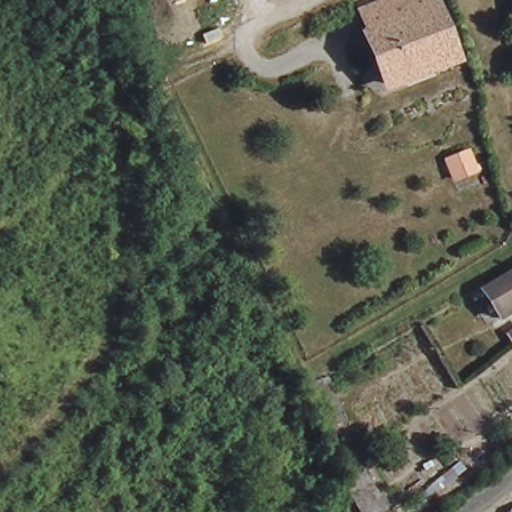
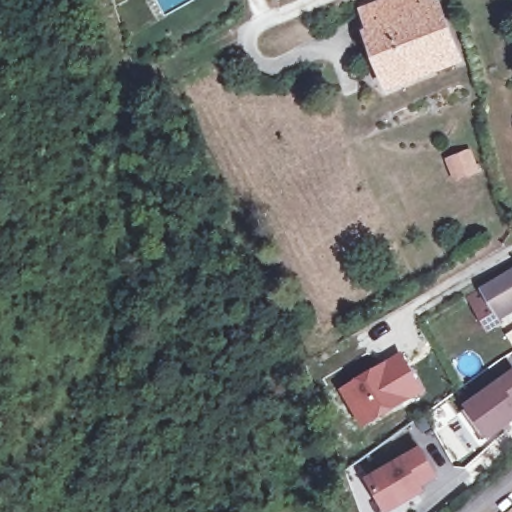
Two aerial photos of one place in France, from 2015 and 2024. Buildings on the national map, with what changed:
unchanged [(359,12),(389,0),(436,0),(438,5),(367,32),(359,12)]
unchanged [(457,55),(387,83),(367,32),(438,5),(457,55)]
unchanged [(457,179),(450,160),(467,152),(475,171),(457,179)]
unchanged [(512,263),(512,305),(496,314),(478,283),(512,263)]
unchanged [(512,342),(508,336),(512,333),(512,342)]
new [(403,353),(427,392),(364,429),(342,390),(403,353)]
new [(512,422),(484,442),(462,412),(512,376),(512,422)]
unchanged [(315,389),(330,383),(338,402),(323,408),(315,389)]
new [(437,478),(421,487),(425,492),(390,512),(387,512),(369,481),(421,450),(437,478)]
unchanged [(512,512),(504,512),(512,506),(512,512)]

